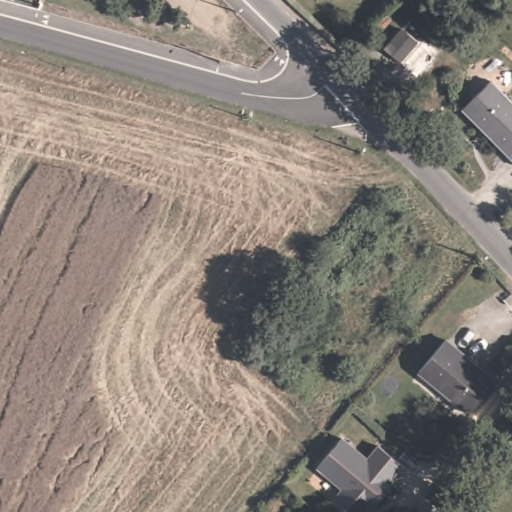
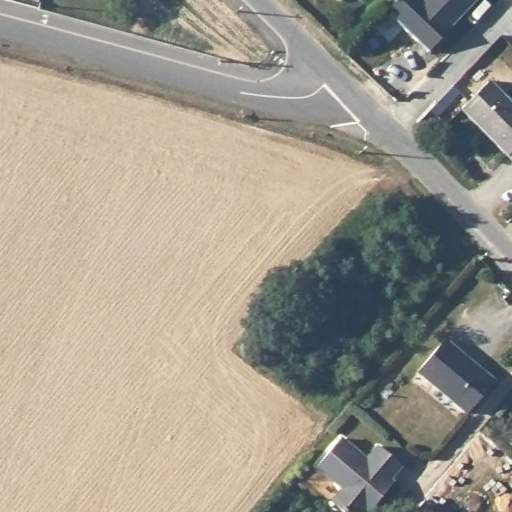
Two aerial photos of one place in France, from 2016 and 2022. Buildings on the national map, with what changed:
new [(397,0),(478,0),(428,53),(385,12),(397,0)]
new [(512,25),(509,22),(512,19),(512,25)]
unchanged [(512,100),(512,160),(458,103),(487,75),(512,100)]
unchanged [(471,407),(467,412),(418,370),(444,336),(494,380),(471,407)]
unchanged [(378,446),(402,466),(390,480),(394,482),(373,508),(366,508),(363,512),(343,512),(332,502),(343,488),(317,467),(341,438),(367,460),(378,446)]

